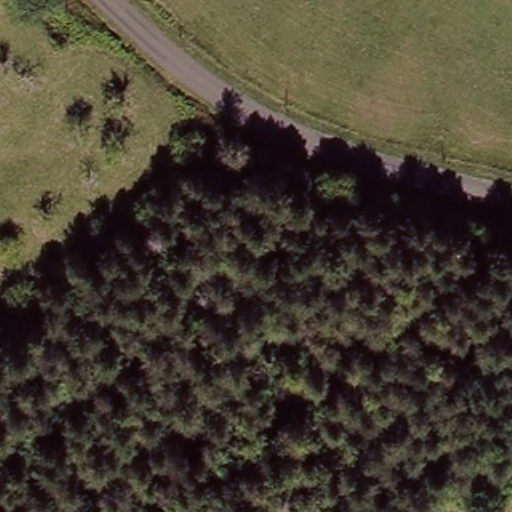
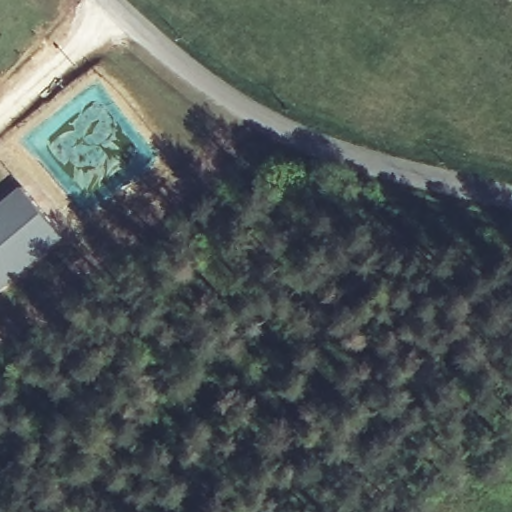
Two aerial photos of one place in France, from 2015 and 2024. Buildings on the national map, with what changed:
new [(64,234),(0,290),(0,207),(23,187),(64,234)]

